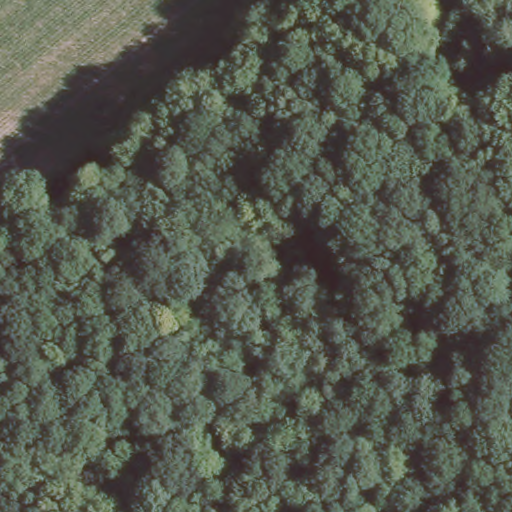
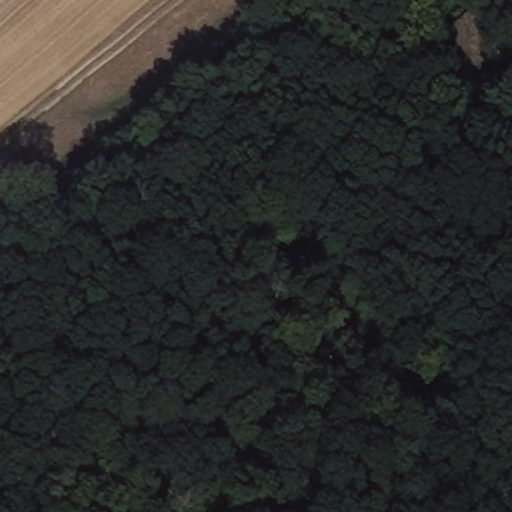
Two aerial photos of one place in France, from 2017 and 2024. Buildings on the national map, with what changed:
unchanged [(508,57),(472,80),(445,32),(480,10),(508,57)]

